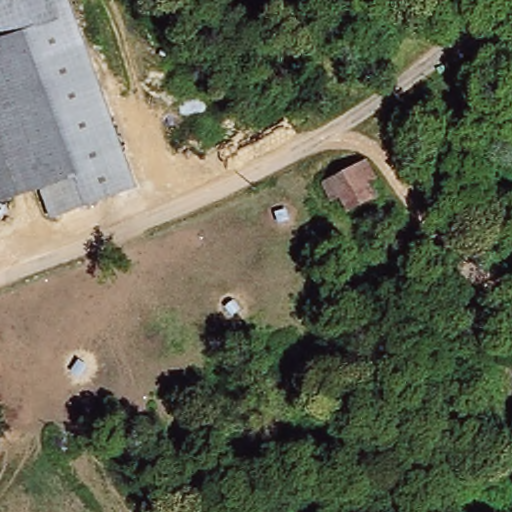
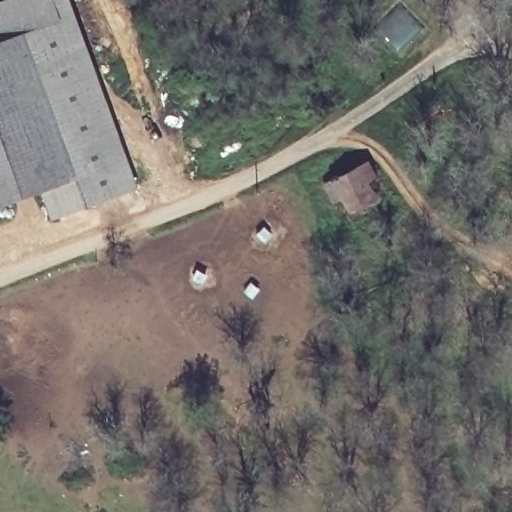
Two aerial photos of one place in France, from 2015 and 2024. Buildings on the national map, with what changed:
unchanged [(50,189),(6,204),(0,185),(0,42),(10,38),(0,14),(0,5),(14,0),(64,0),(129,194),(83,209),(60,217),(51,188),(50,189)]
unchanged [(0,42),(0,14),(10,38),(0,42)]
unchanged [(363,171),(378,203),(354,214),(339,182),(363,171)]

